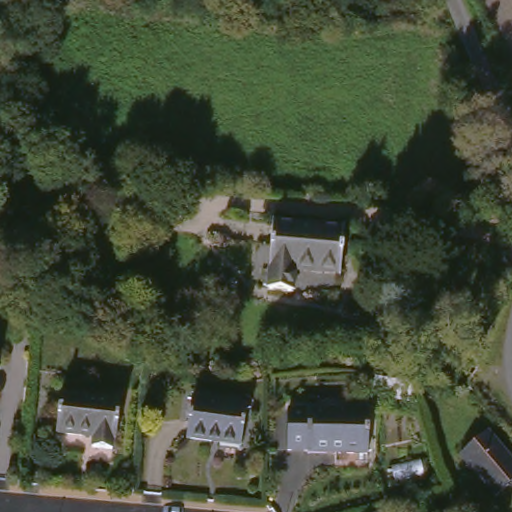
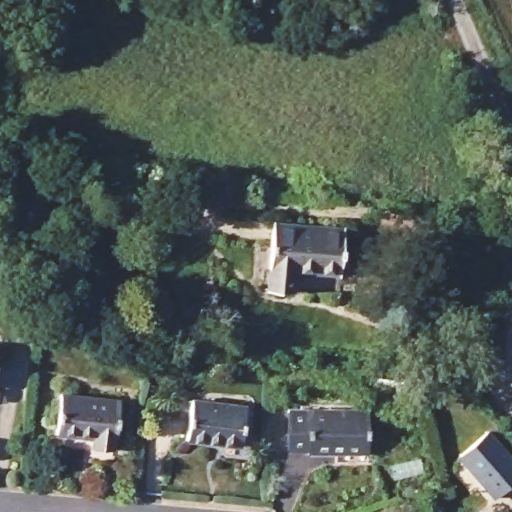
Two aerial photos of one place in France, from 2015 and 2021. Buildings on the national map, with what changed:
unchanged [(273,225),(345,231),(341,275),(297,270),(294,297),(266,295),(273,225)]
unchanged [(115,439),(112,439),(111,448),(93,447),(93,438),(56,436),(59,402),(118,406),(115,439)]
unchanged [(238,449),(183,445),(187,406),(241,410),(238,449)]
unchanged [(362,461),(303,456),(303,453),(283,452),(286,412),(365,417),(362,461)]
unchanged [(495,502),(458,457),(486,433),(512,466),(512,489),(495,502)]

